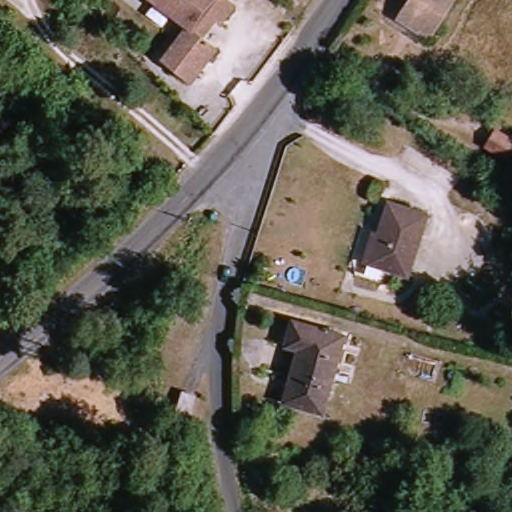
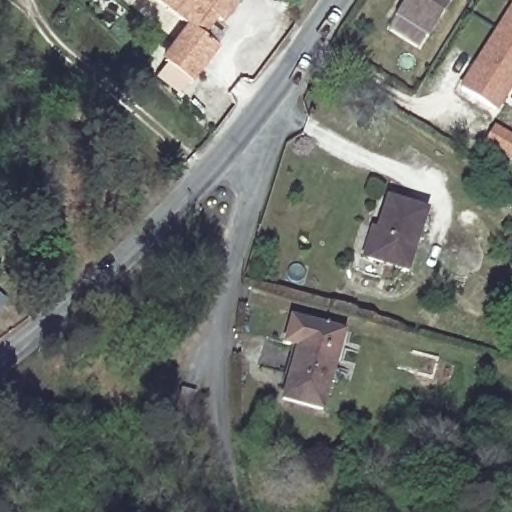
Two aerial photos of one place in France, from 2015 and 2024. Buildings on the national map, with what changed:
unchanged [(150,0),(223,0),(233,9),(217,27),(212,22),(205,29),(197,39),(212,52),(183,85),(159,64),(180,40),(187,32),(150,0)]
unchanged [(418,0),(463,0),(441,38),(407,18),(418,0)]
new [(512,79),(492,109),(458,88),(512,5),(512,79)]
unchanged [(512,140),(512,159),(510,162),(483,148),(494,131),(512,140)]
unchanged [(379,233),(387,235),(399,198),(437,210),(416,274),(379,263),(370,260),(379,233)]
unchanged [(308,346),(291,341),(300,315),(353,329),(329,409),(293,399),(308,346)]

